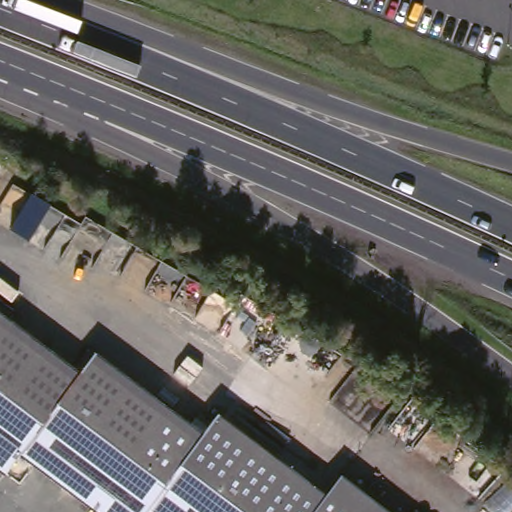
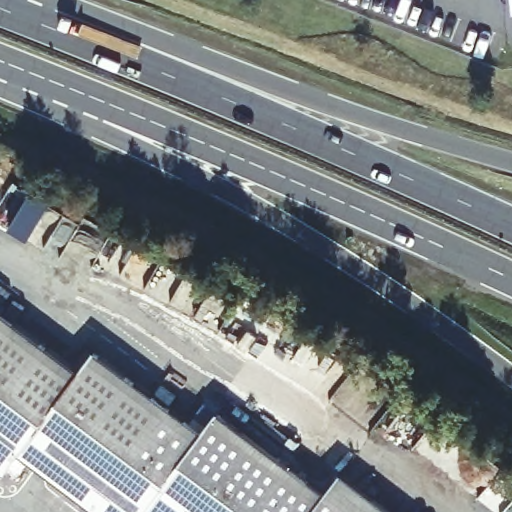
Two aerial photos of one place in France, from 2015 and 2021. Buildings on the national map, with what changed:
unchanged [(9,476),(0,470),(0,306),(86,373),(102,352),(209,433),(224,414),(333,496),(354,512),(96,512),(24,457),(9,476)]
unchanged [(354,512),(333,496),(347,478),(392,512),(354,512)]

